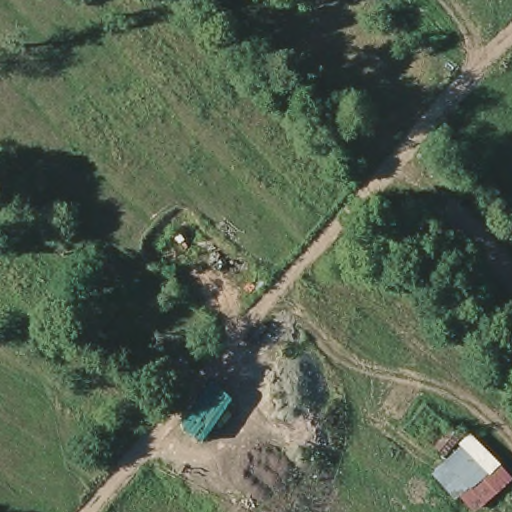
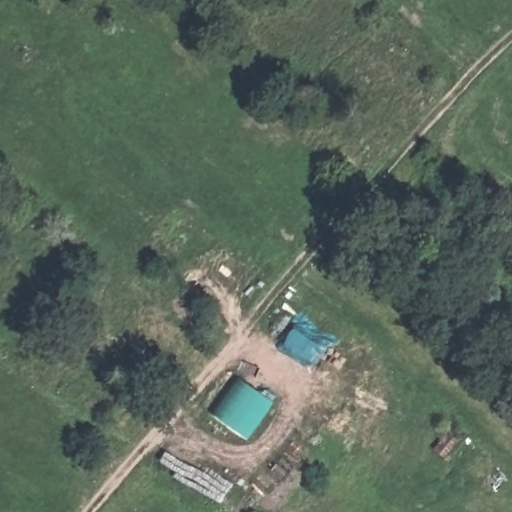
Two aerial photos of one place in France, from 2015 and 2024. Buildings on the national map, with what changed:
unchanged [(245,444),(206,410),(242,372),(281,410),(245,444)]
demolished [(478,512),(472,512),(436,480),(472,442),(511,480),(478,512)]

